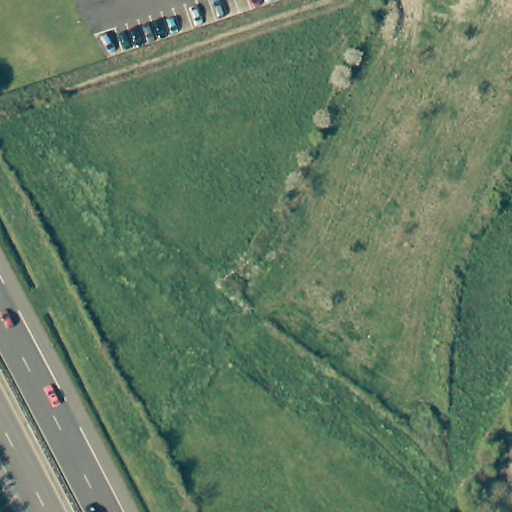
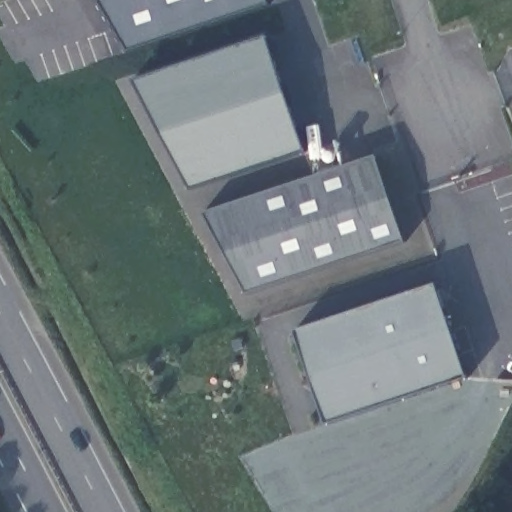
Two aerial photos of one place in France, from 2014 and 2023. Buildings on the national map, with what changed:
new [(268,4),(128,52),(98,0),(266,0),(268,4)]
new [(264,35),(305,150),(191,188),(134,79),(264,35)]
new [(204,213),(376,156),(405,240),(245,294),(204,213)]
new [(296,331),(434,284),(466,377),(326,423),(296,331)]

